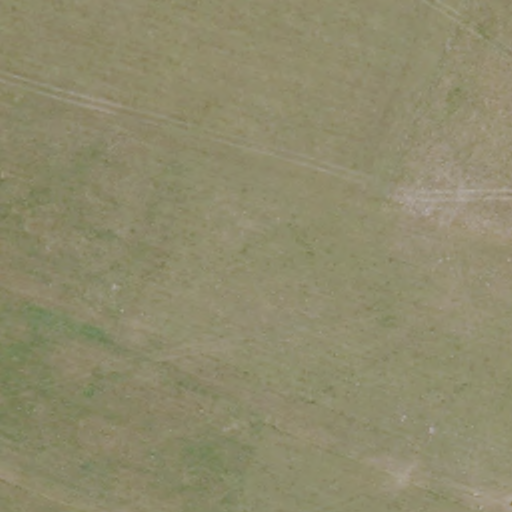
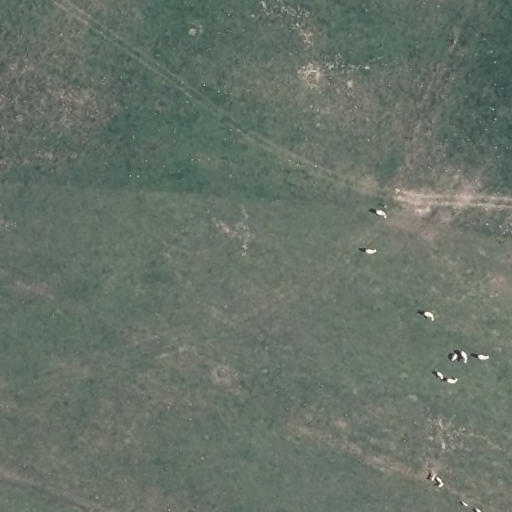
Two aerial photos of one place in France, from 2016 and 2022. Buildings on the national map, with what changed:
[]

